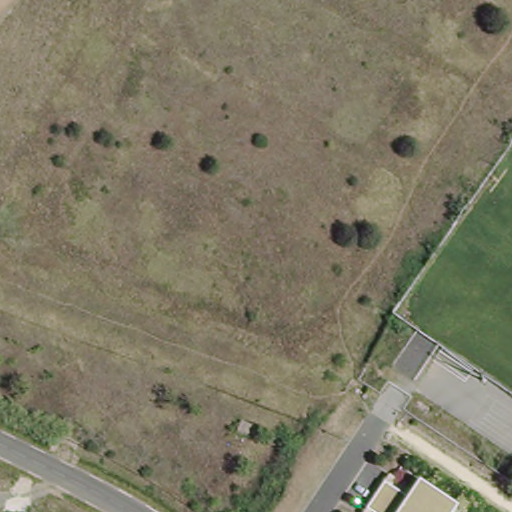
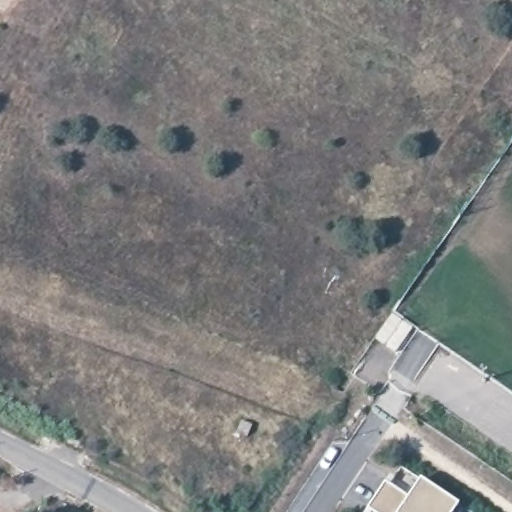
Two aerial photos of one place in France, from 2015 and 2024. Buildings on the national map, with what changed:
unchanged [(248,436),(237,431),(242,420),(253,425),(248,436)]
unchanged [(359,499),(377,472),(397,485),(409,468),(468,510),(467,512),(379,512),(359,499)]

